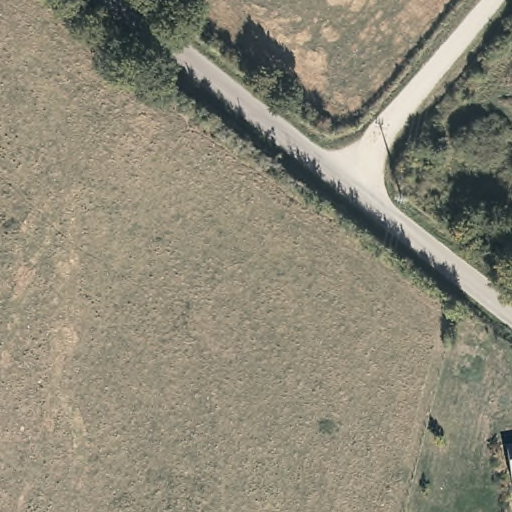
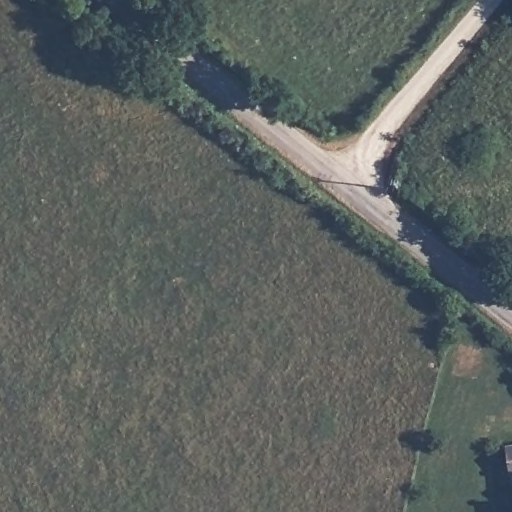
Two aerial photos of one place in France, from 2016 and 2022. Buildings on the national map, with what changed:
unchanged [(507,452),(512,451),(512,484),(511,485),(507,452)]

